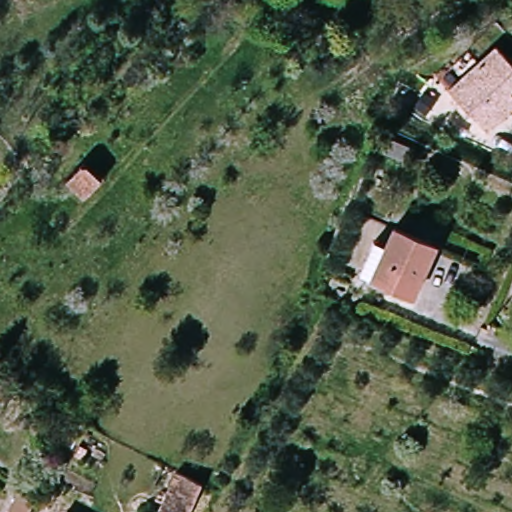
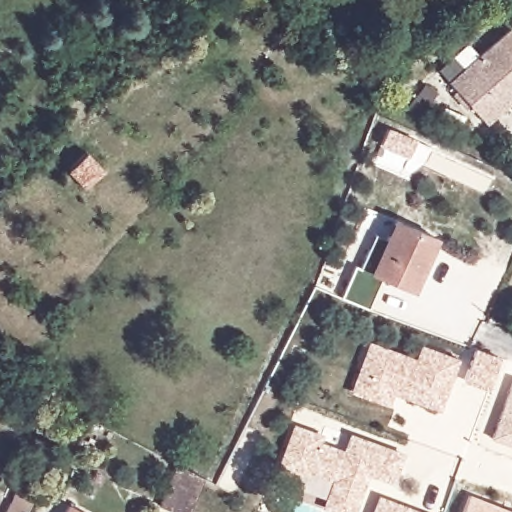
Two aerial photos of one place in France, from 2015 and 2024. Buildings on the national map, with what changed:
unchanged [(487,121),(449,79),(496,36),(512,53),(512,78),(510,80),(512,82),(512,99),(502,108),(487,121)]
unchanged [(83,154),(99,174),(82,190),(64,174),(83,154)]
unchanged [(428,237),(405,290),(368,273),(391,221),(428,237)]
new [(459,358),(439,412),(394,394),(390,406),(351,392),(369,340),(415,358),(420,344),(459,358)]
new [(512,378),(512,447),(490,439),(512,378)]
new [(350,433),(406,453),(393,485),(369,476),(356,512),(329,512),(321,509),(324,498),(273,478),(277,466),(275,465),(292,422),(323,434),(321,441),(343,450),(350,433)]
unchanged [(185,466),(207,478),(191,512),(179,512),(164,501),(185,466)]
unchanged [(18,490),(35,498),(27,512),(4,512),(18,490)]
new [(424,512),(372,512),(378,494),(424,512)]
new [(468,494),(512,510),(512,512),(463,512),(468,494)]
unchanged [(66,506),(76,512),(63,512),(66,506)]

